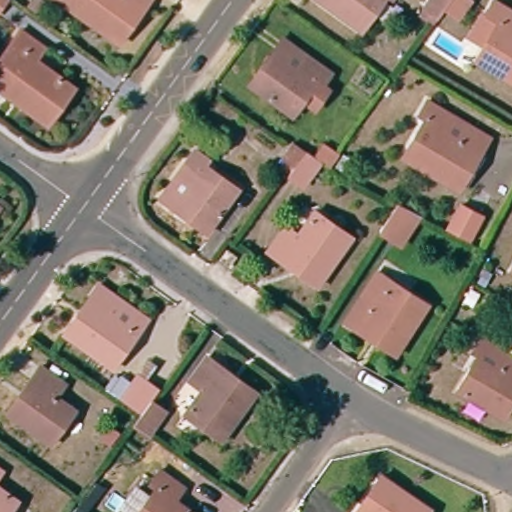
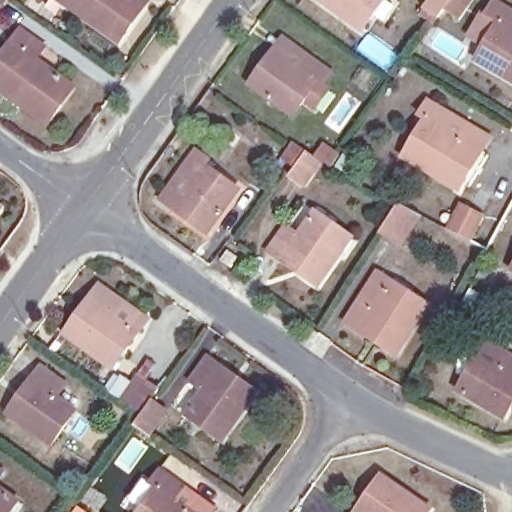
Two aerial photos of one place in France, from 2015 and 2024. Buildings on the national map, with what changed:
unchanged [(59,0),(152,0),(148,4),(119,44),(66,5),(59,0)]
unchanged [(357,28),(316,0),(378,0),(357,28)]
unchanged [(435,6),(430,13),(414,2),(416,0),(458,0),(452,8),(448,14),(435,6)]
unchanged [(475,48),(460,39),(475,15),(477,17),(481,18),(490,4),(512,17),(512,26),(507,34),(512,37),(512,85),(469,58),(475,48)]
unchanged [(52,57),(43,71),(75,95),(46,130),(0,96),(0,55),(7,45),(18,31),(52,57)]
unchanged [(321,83),(315,80),(290,115),(254,88),(265,72),(259,68),(272,49),(281,37),(306,55),(330,72),(321,83)]
unchanged [(396,151),(417,113),(410,109),(418,93),(448,110),(481,128),(474,142),(451,183),(396,151)]
unchanged [(311,138),(326,150),(318,162),(303,150),(311,138)]
unchanged [(299,184),(286,176),(290,170),(278,162),(290,144),(302,153),(315,163),(299,184)]
unchanged [(177,179),(195,155),(208,164),(205,170),(236,191),(207,230),(190,217),(186,222),(171,212),(159,203),(177,179)]
unchanged [(454,199),(477,210),(464,235),(442,224),(454,199)]
unchanged [(396,248),(374,235),(392,207),(414,218),(396,248)]
unchanged [(283,227),(297,234),(311,211),(350,235),(320,286),(302,276),(304,270),(282,258),(278,264),(266,257),(283,227)]
unchanged [(224,248),(236,256),(228,268),(216,260),(224,248)]
unchanged [(512,272),(509,270),(512,266),(512,272)]
unchanged [(355,300),(374,309),(388,282),(426,303),(395,359),(339,328),(355,300)]
unchanged [(61,333),(95,283),(117,298),(145,317),(135,332),(111,367),(61,333)]
unchanged [(456,389),(475,355),(470,352),(478,337),(512,356),(512,400),(503,415),(456,389)]
unchanged [(219,432),(184,408),(198,387),(186,378),(201,356),(213,365),(233,379),(248,389),(219,432)]
unchanged [(60,384),(51,396),(70,410),(46,442),(3,412),(16,394),(29,377),(36,366),(60,384)]
unchanged [(140,412),(127,402),(143,379),(157,389),(149,399),(162,410),(146,435),(132,425),(140,412)]
unchanged [(2,468),(0,472),(0,467),(2,468)]
unchanged [(148,485),(160,468),(184,486),(175,499),(192,512),(141,512),(156,490),(148,485)]
unchanged [(429,510),(428,512),(355,512),(379,476),(429,510)]
unchanged [(18,499),(9,512),(0,512),(0,487),(18,499)]

